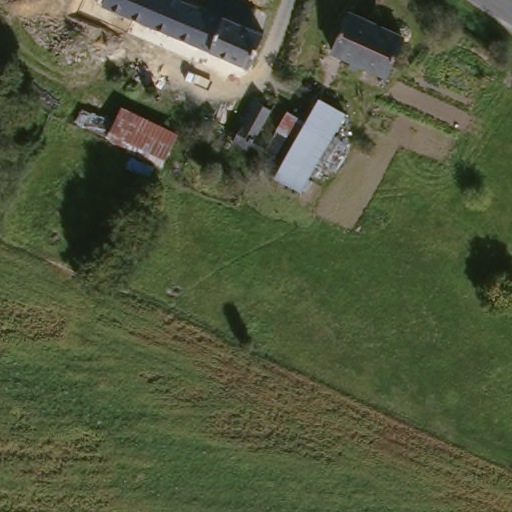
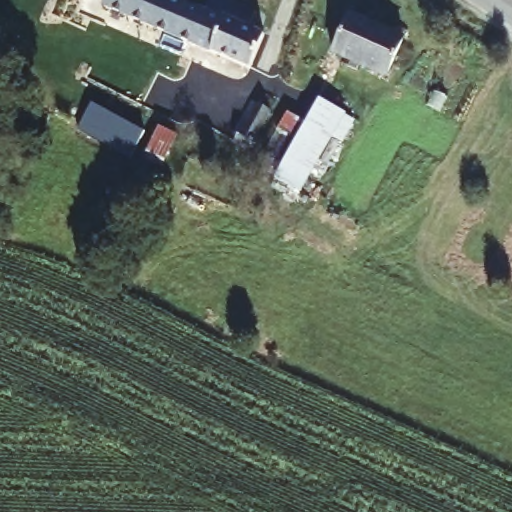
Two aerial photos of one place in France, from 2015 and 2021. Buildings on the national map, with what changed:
unchanged [(101,6),(103,0),(183,0),(182,2),(206,12),(212,0),(222,0),(252,15),(246,30),(256,34),(262,37),(250,72),(101,6)]
unchanged [(343,9),(397,33),(381,73),(327,48),(343,9)]
unchanged [(343,116),(301,193),(271,180),(315,96),(343,116)]
unchanged [(268,132),(271,135),(277,146),(261,150),(242,142),(262,103),(277,111),(268,132)]
unchanged [(175,135),(156,170),(118,153),(137,115),(175,135)]

